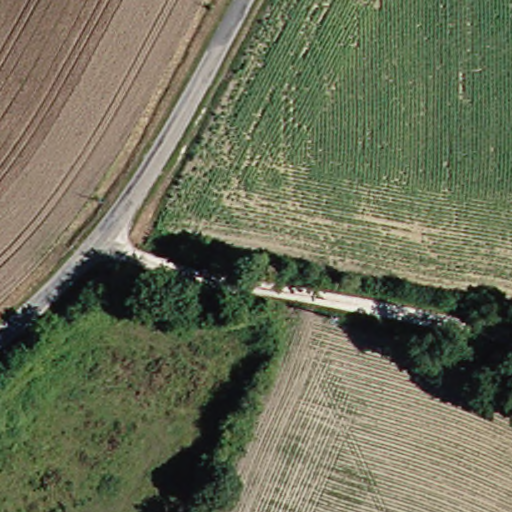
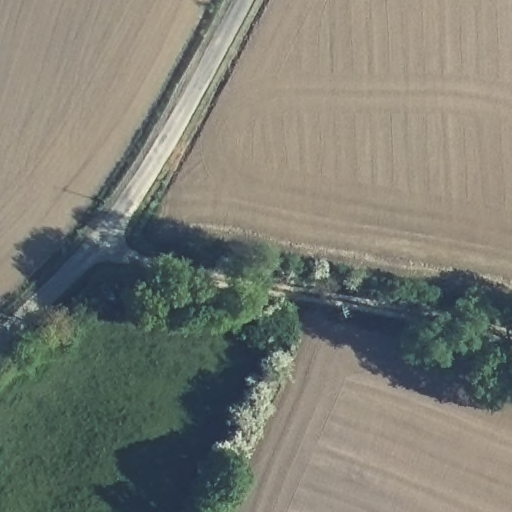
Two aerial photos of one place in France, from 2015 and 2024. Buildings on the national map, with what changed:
[]

